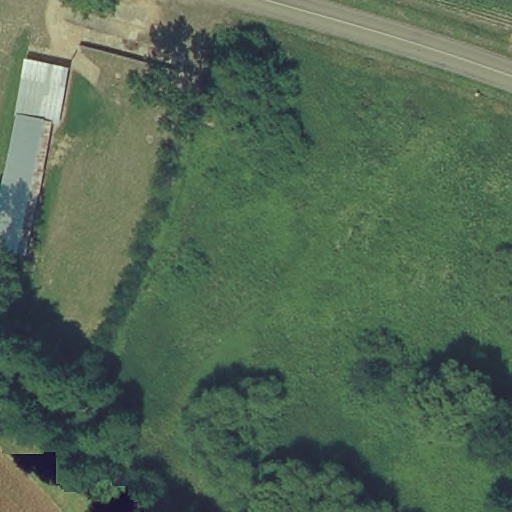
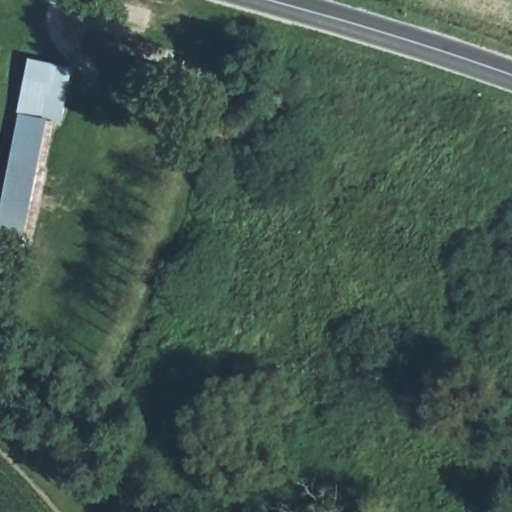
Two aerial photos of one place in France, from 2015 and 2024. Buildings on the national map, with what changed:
unchanged [(28,117),(37,61),(80,69),(70,126),(64,126),(40,254),(2,245),(28,117)]

